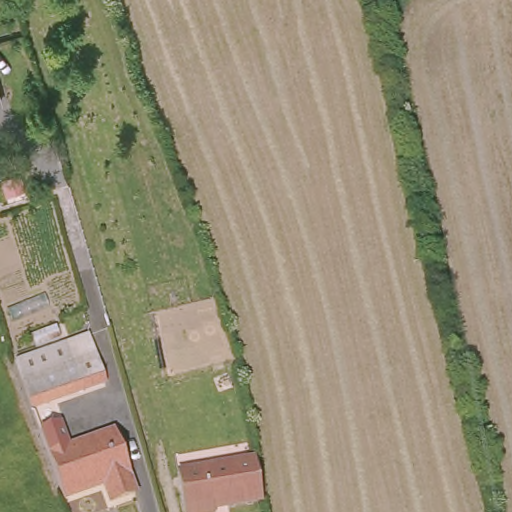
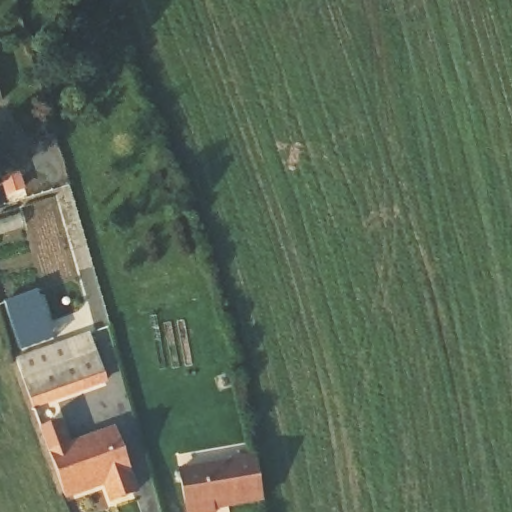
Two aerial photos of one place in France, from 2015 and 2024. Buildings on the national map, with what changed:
new [(37,293),(53,351),(21,361),(4,304),(37,293)]
unchanged [(92,338),(108,392),(37,413),(21,361),(92,338)]
unchanged [(41,433),(62,426),(70,450),(115,436),(135,499),(111,506),(105,487),(63,500),(49,457),(41,433)]
unchanged [(265,501),(215,512),(216,512),(186,512),(177,477),(256,459),(265,501)]

